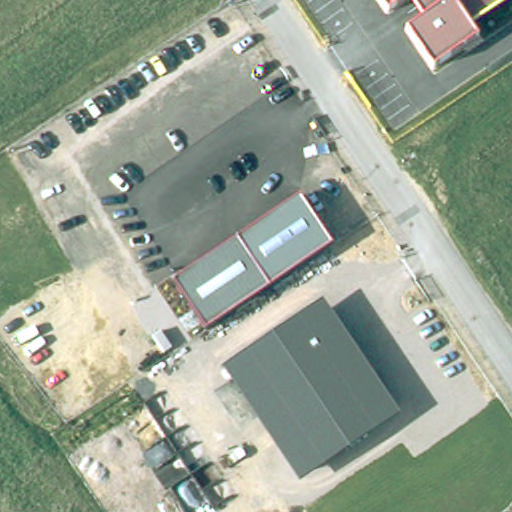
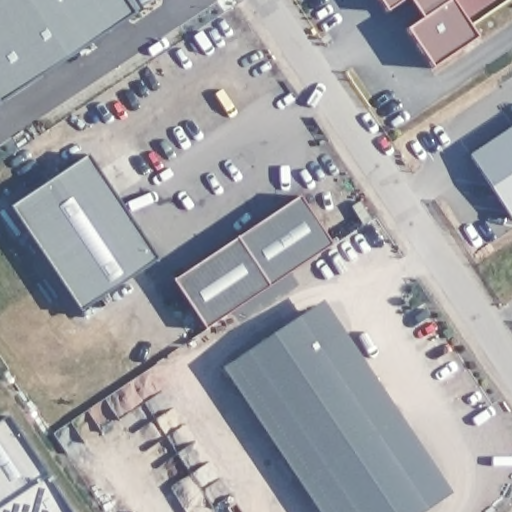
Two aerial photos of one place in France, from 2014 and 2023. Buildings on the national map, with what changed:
new [(135,15),(0,105),(0,0),(125,0),(135,15)]
unchanged [(389,12),(380,0),(406,0),(389,12)]
unchanged [(472,28),(479,38),(434,68),(405,25),(420,15),(410,0),(512,0),(512,1),(472,28)]
new [(512,125),(512,220),(468,153),(512,125)]
new [(87,154),(159,261),(82,313),(12,209),(87,154)]
unchanged [(333,246),(205,330),(170,280),(297,195),(333,246)]
unchanged [(402,414),(300,485),(220,368),(322,299),(402,414)]
new [(425,512),(318,512),(300,485),(402,414),(452,494),(425,512)]
new [(44,476),(68,512),(0,512),(0,421),(6,417),(44,476)]

